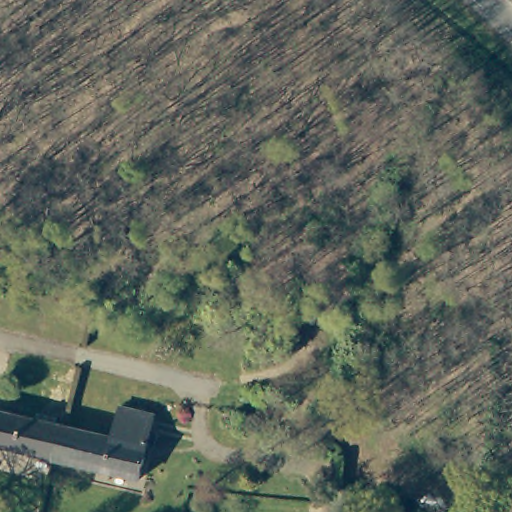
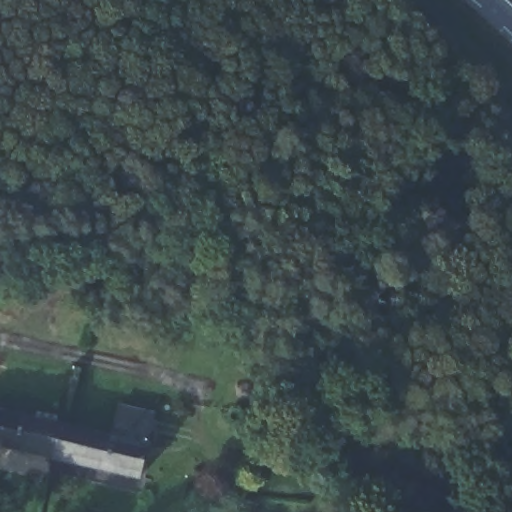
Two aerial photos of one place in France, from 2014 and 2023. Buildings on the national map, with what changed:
unchanged [(0,406),(42,415),(48,388),(72,393),(65,425),(57,458),(0,445),(0,406)]
unchanged [(57,458),(65,425),(114,435),(119,406),(158,413),(143,480),(57,458)]

